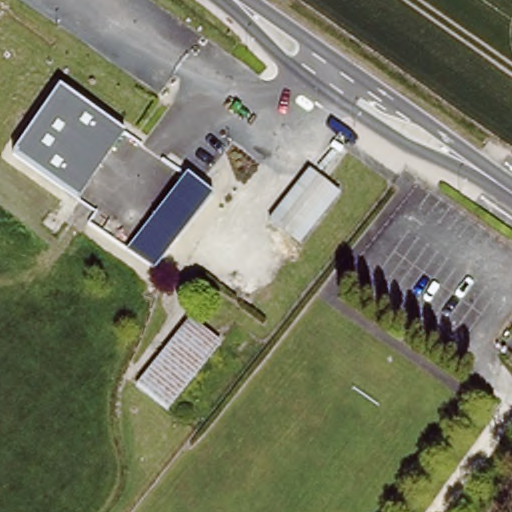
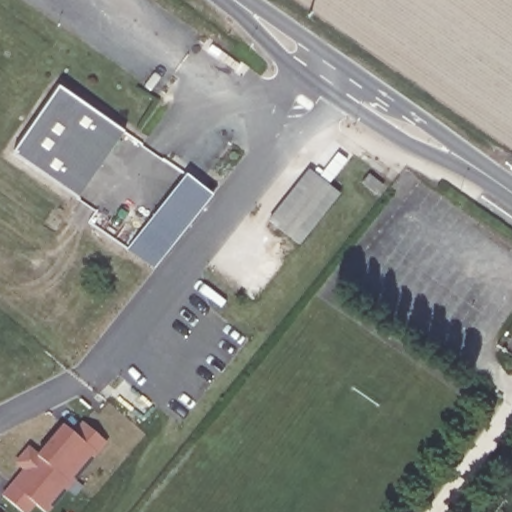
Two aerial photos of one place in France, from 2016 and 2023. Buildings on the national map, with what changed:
unchanged [(124,133),(78,200),(11,155),(58,86),(124,133)]
unchanged [(269,215),(311,166),(341,192),(299,241),(269,215)]
unchanged [(211,196),(153,272),(124,252),(185,175),(211,196)]
demolished [(135,386),(190,320),(220,345),(164,411),(135,386)]
new [(49,512),(44,512),(36,506),(30,512),(21,512),(0,496),(21,471),(13,464),(28,446),(38,454),(63,424),(71,431),(81,421),(107,442),(49,512)]

